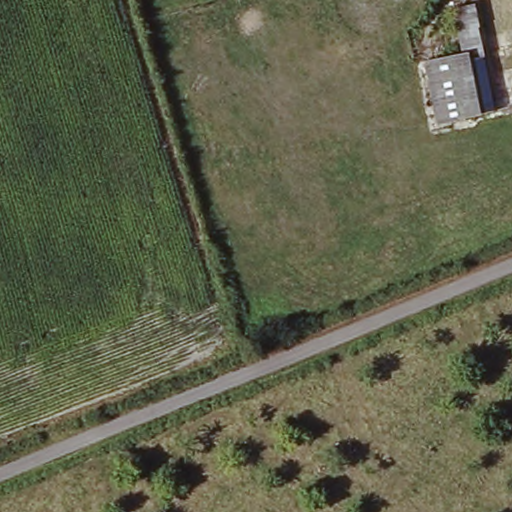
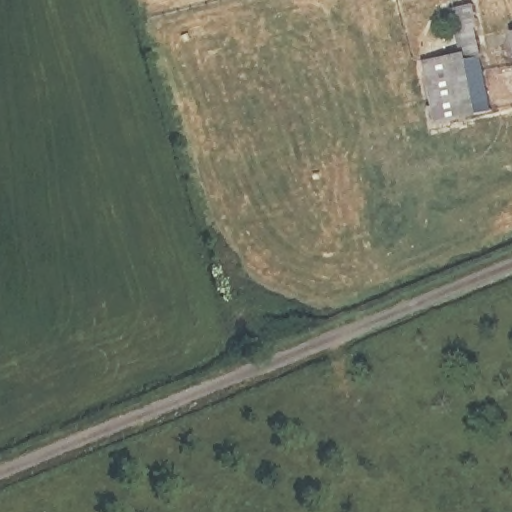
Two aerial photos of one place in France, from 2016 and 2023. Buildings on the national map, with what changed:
unchanged [(501,109),(437,122),(426,60),(461,54),(455,5),(480,0),(501,109)]

